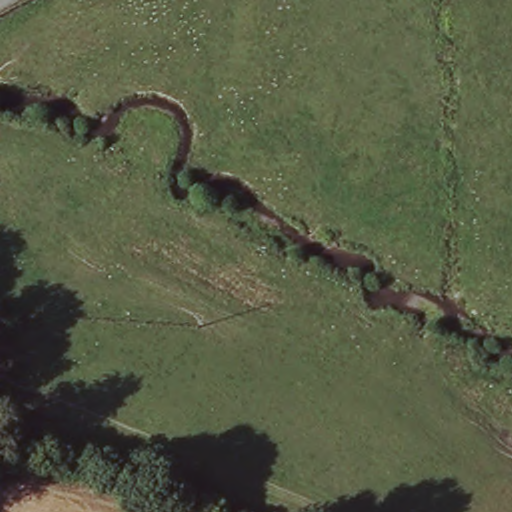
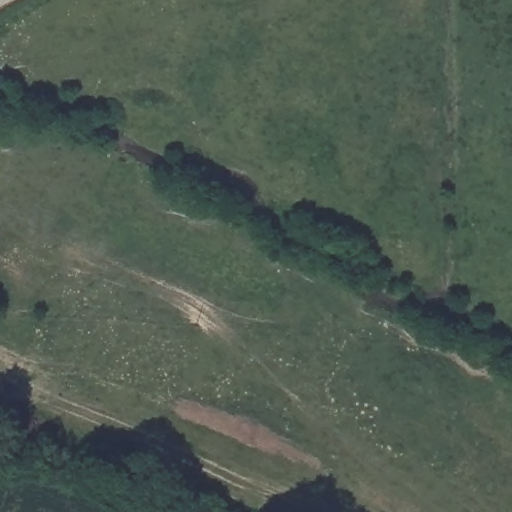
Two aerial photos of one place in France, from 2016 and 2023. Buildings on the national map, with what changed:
[]

